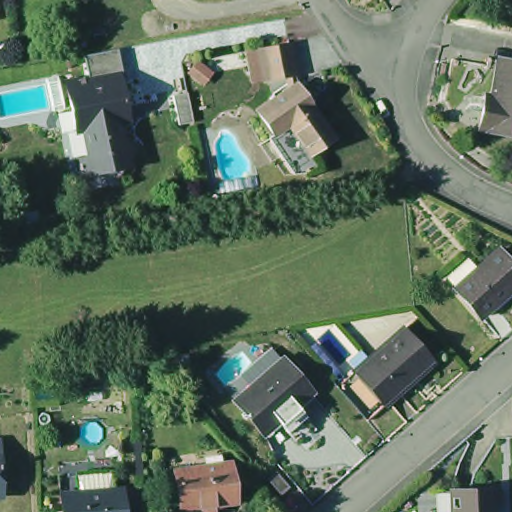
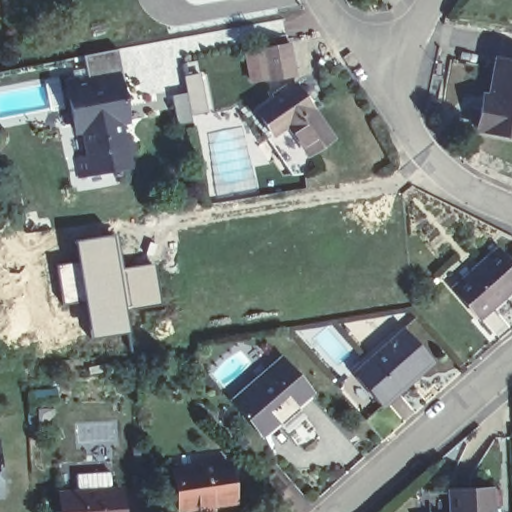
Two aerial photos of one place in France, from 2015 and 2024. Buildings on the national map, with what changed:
unchanged [(264,84),(261,67),(259,52),(286,47),(287,66),(289,80),(264,84)]
unchanged [(124,123),(131,167),(95,175),(77,177),(73,160),(84,154),(66,77),(87,74),(83,54),(122,49),(135,121),(124,123)]
unchanged [(489,107),(491,96),(498,97),(507,57),(512,59),(512,134),(486,127),(489,107)]
unchanged [(265,136),(249,114),(288,88),(324,140),(300,156),(281,127),(265,136)]
new [(118,268),(124,309),(128,332),(88,337),(82,300),(61,303),(54,264),(75,260),(72,239),(113,233),(118,268)]
unchanged [(512,258),(512,297),(485,320),(461,291),(507,252),(512,258)]
new [(153,262),(160,303),(124,309),(118,268),(153,262)]
unchanged [(410,332),(440,367),(391,410),(361,375),(410,332)]
unchanged [(266,433),(240,403),(288,360),(318,393),(301,408),(271,438),(266,433)]
unchanged [(5,487),(0,488),(0,443),(3,442),(5,487)]
unchanged [(233,467),(238,507),(217,510),(217,512),(201,512),(183,512),(178,473),(233,467)]
unchanged [(275,468),(288,483),(279,490),(266,476),(275,468)]
unchanged [(489,485),(494,512),(454,512),(451,491),(489,485)]
unchanged [(66,492),(128,486),(130,512),(68,512),(68,510),(66,492)]

